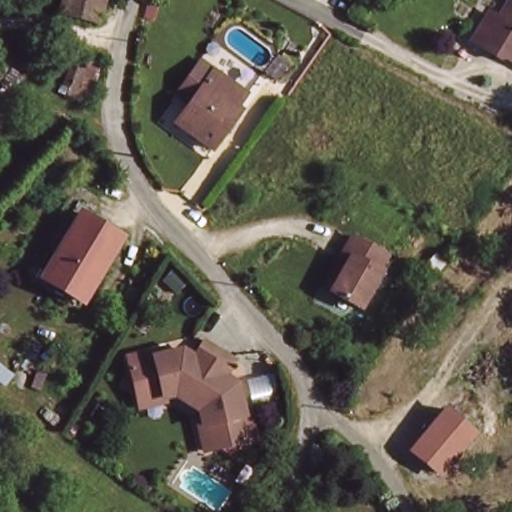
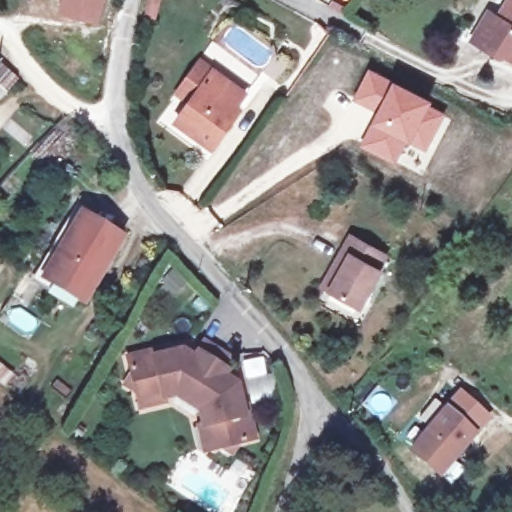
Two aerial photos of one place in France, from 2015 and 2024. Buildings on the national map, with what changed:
unchanged [(67,16),(72,0),(110,0),(101,27),(67,16)]
unchanged [(498,19),(510,0),(512,0),(512,59),(498,51),(492,58),(472,46),(492,15),(498,19)]
unchanged [(218,64),(253,89),(242,105),(248,110),(218,151),(178,123),(218,64)]
demolished [(71,83),(75,65),(91,70),(85,88),(71,83)]
new [(430,104),(446,112),(425,152),(407,143),(395,165),(357,146),(375,111),(352,99),(368,67),(392,79),(432,100),(430,104)]
unchanged [(88,211),(127,236),(87,301),(49,277),(88,211)]
unchanged [(384,253),(378,264),(383,266),(364,306),(325,289),(350,236),(384,253)]
unchanged [(127,356),(153,350),(155,355),(156,354),(183,348),(195,356),(205,341),(220,351),(195,392),(180,382),(172,395),(165,397),(165,400),(139,406),(136,394),(135,389),(125,383),(131,372),(127,356)]
unchanged [(235,360),(226,376),(238,383),(245,416),(250,414),(257,440),(240,444),(233,454),(223,448),(207,452),(200,426),(203,425),(200,413),(210,401),(195,392),(220,351),(235,360)]
unchanged [(415,451),(452,412),(477,436),(440,475),(415,451)]

